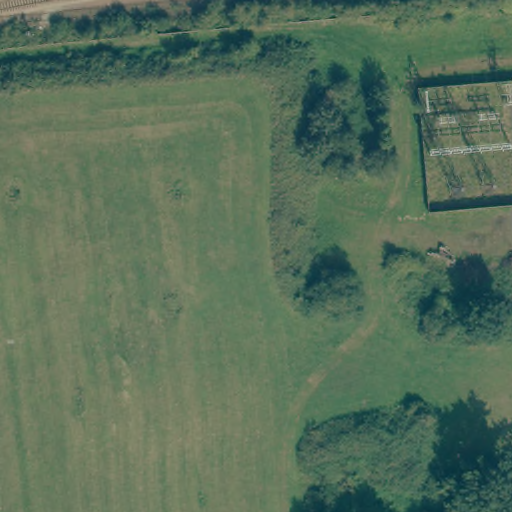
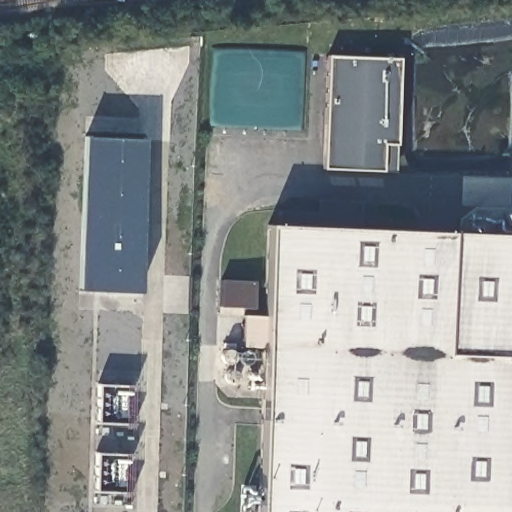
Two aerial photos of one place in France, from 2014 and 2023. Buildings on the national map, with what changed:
new [(330,56),(401,59),(397,144),(395,170),(382,170),(326,168),(330,56)]
new [(88,138),(149,140),(143,291),(82,290),(88,138)]
new [(317,211),(317,200),(362,201),(360,229),(512,236),(512,512),(263,512),(273,225),(274,211),(317,211)]

